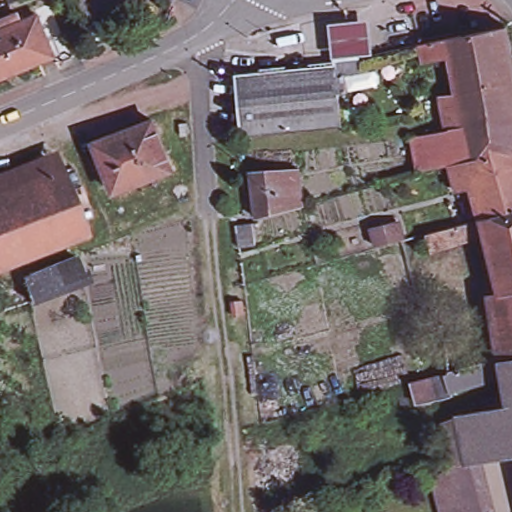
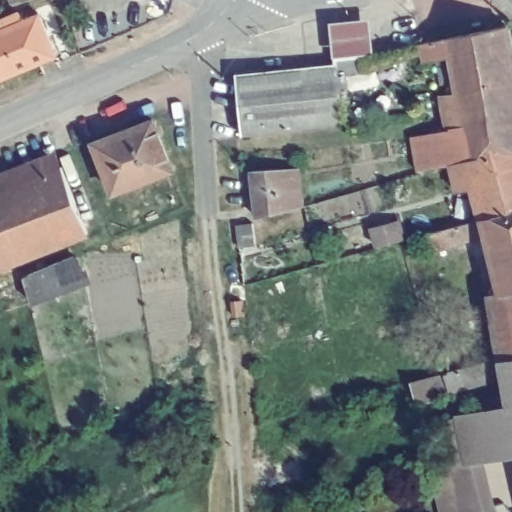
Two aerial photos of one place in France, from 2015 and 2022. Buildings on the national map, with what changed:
unchanged [(14,0),(19,0),(15,1),(14,0)]
unchanged [(25,14),(27,21),(44,14),(60,55),(0,79),(0,32),(8,29),(5,21),(25,14)]
unchanged [(422,132),(459,123),(451,78),(465,75),(460,52),(437,56),(432,38),(512,23),(512,147),(460,160),(428,168),(422,132)]
unchanged [(375,25),(377,61),(367,62),(335,64),(335,28),(375,25)]
unchanged [(243,69),(335,64),(367,62),(369,79),(353,79),(354,92),(347,93),(350,129),(245,136),(243,69)]
unchanged [(95,143),(154,121),(172,170),(115,192),(95,143)]
unchanged [(496,230),(465,242),(464,239),(442,245),(437,229),(492,215),(484,182),(467,187),(460,160),(512,147),(512,287),(496,230)]
unchanged [(60,167),(0,192),(0,174),(54,152),(60,167)]
unchanged [(264,212),(259,167),(302,164),(309,201),(264,212)]
unchanged [(0,269),(0,192),(60,167),(86,234),(0,269)]
unchanged [(247,242),(245,243),(242,221),(245,221),(259,219),(262,241),(247,242)]
unchanged [(382,243),(377,226),(404,219),(409,236),(382,243)]
unchanged [(77,257),(86,280),(34,301),(25,277),(77,257)]
unchanged [(500,289),(512,287),(512,351),(507,328),(500,289)]
unchanged [(462,385),(464,391),(452,394),(427,399),(421,377),(435,373),(456,369),(460,368),(512,357),(512,374),(462,385)]
unchanged [(450,421),(470,417),(469,411),(512,404),(512,454),(492,457),(505,512),(455,512),(445,469),(460,465),(450,421)]

